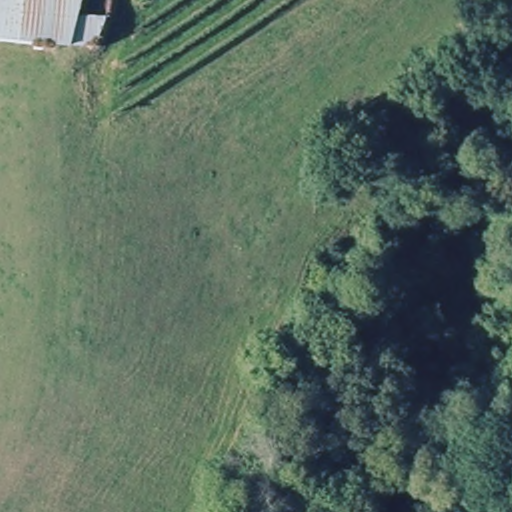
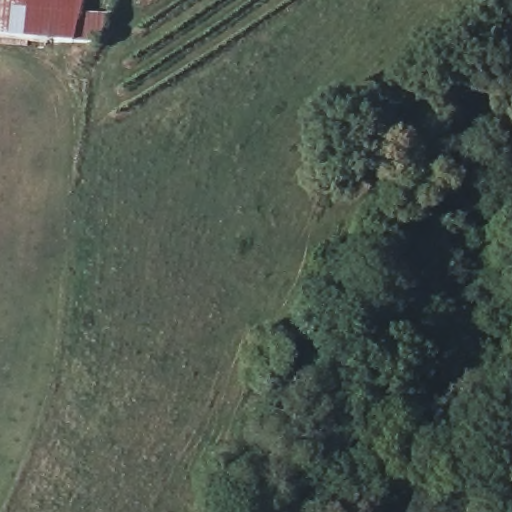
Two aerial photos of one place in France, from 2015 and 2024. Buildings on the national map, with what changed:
unchanged [(34,41),(4,39),(9,0),(98,0),(85,42),(34,41)]

